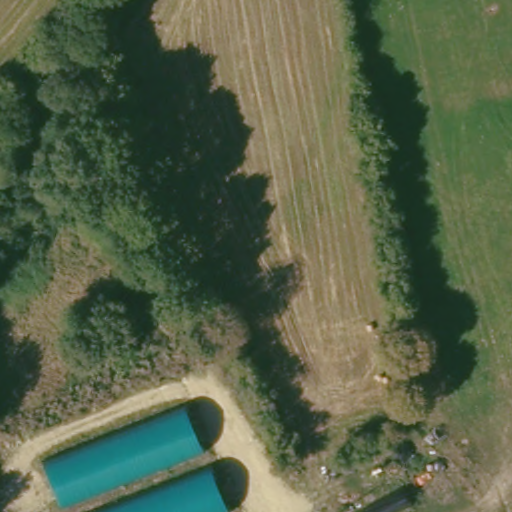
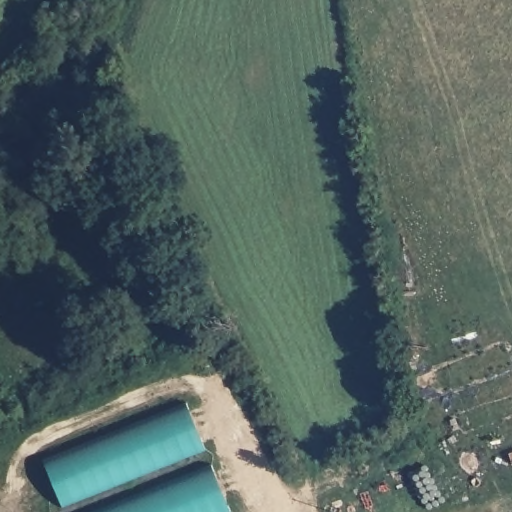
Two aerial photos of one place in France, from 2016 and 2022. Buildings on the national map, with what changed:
unchanged [(205,452),(62,505),(45,462),(186,403),(205,452)]
unchanged [(230,512),(101,512),(212,467),(230,512)]

